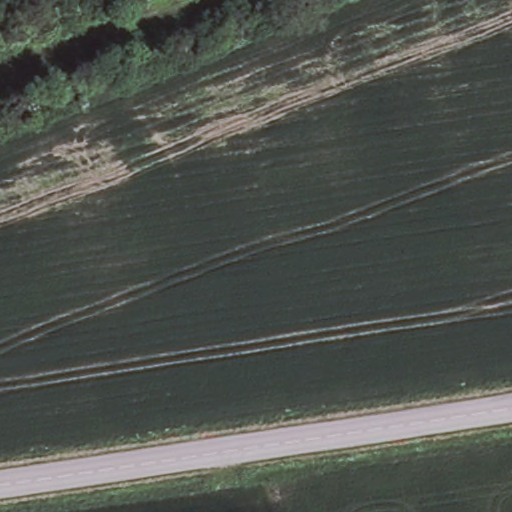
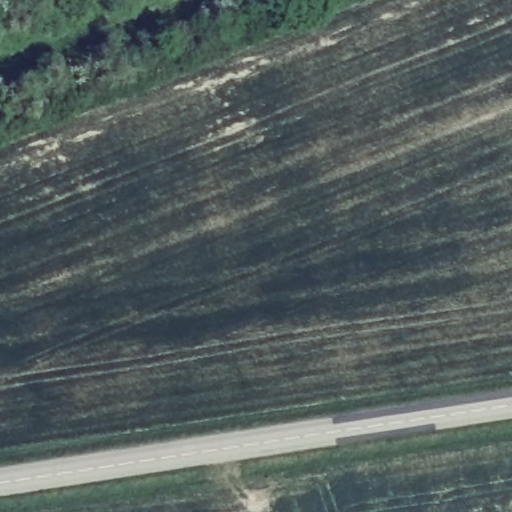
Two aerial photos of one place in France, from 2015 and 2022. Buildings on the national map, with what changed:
[]

